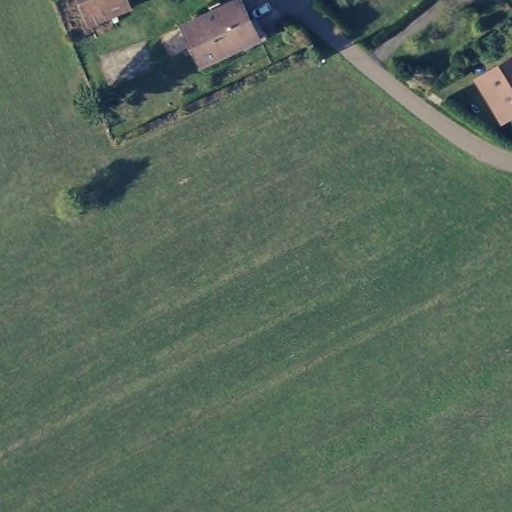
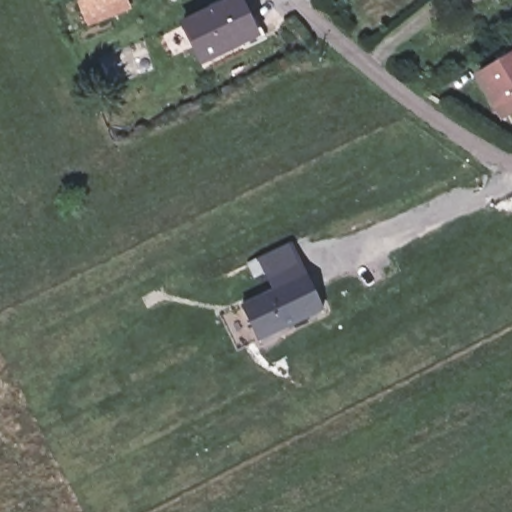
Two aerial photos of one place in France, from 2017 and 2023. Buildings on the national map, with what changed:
unchanged [(129,3),(89,19),(82,0),(128,0),(129,3)]
unchanged [(218,0),(238,0),(251,28),(196,56),(178,19),(218,0)]
unchanged [(512,97),(498,105),(474,68),(512,46),(512,97)]
new [(271,286),(265,273),(298,258),(321,305),(256,336),(239,302),(271,286)]

